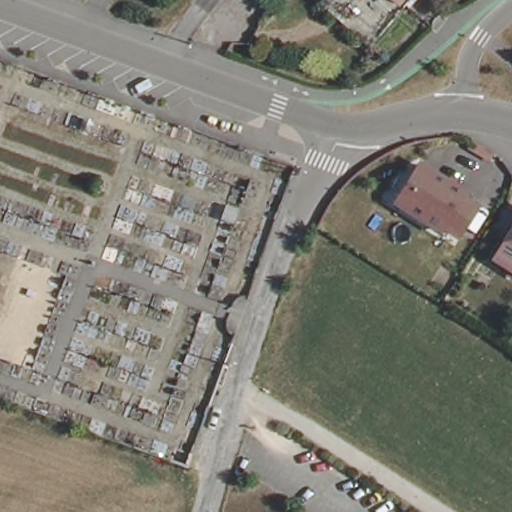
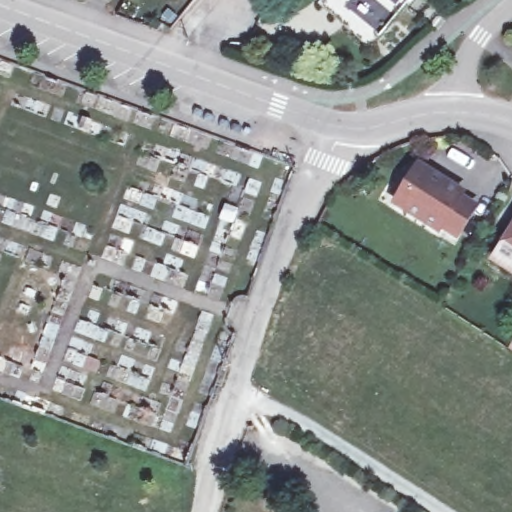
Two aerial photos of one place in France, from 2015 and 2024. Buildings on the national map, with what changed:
unchanged [(396,0),(409,0),(380,35),(376,40),(328,0),(386,0),(392,5),(396,0)]
unchanged [(386,0),(396,0),(392,5),(386,0)]
unchanged [(456,190),(453,195),(467,203),(450,233),(435,224),(432,229),(397,208),(389,203),(397,189),(412,164),(456,190)]
unchanged [(496,265),(512,240),(512,275),(496,265)]

